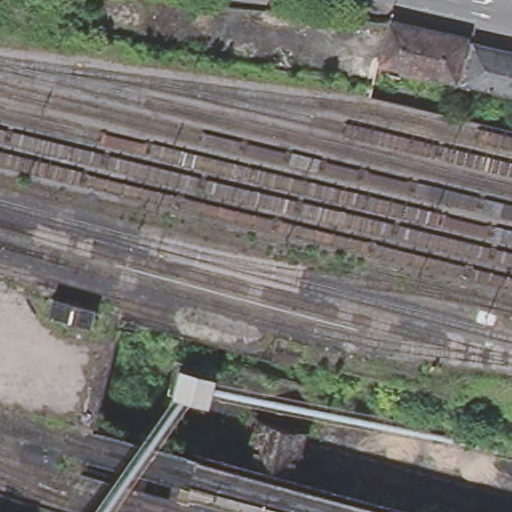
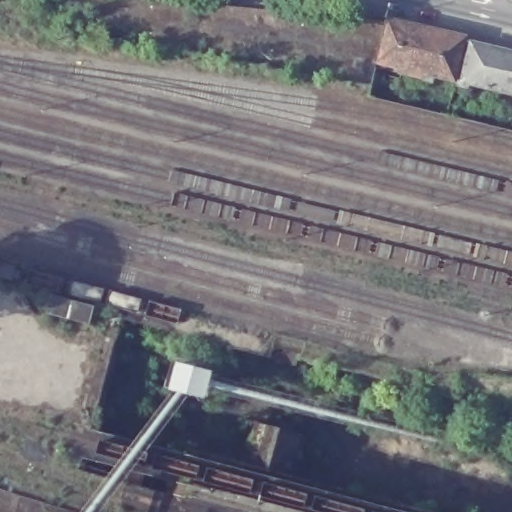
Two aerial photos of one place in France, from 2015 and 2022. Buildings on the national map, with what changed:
unchanged [(411,64),(373,55),(384,11),(422,20),(411,64)]
unchanged [(482,87),(484,80),(466,76),(464,81),(451,78),(452,73),(411,64),(422,20),(462,29),(461,33),(469,35),(512,45),(512,87),(496,83),(493,90),(482,87)]
unchanged [(364,88),(373,55),(411,64),(404,98),(364,88)]
unchanged [(94,309),(90,326),(48,315),(53,298),(94,309)]
unchanged [(124,414),(144,344),(214,359),(194,429),(124,414)]

